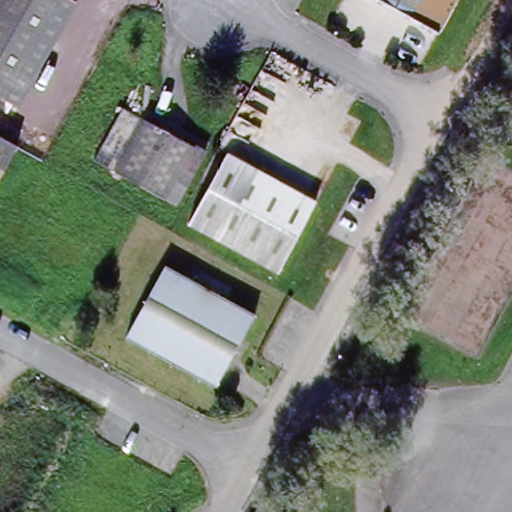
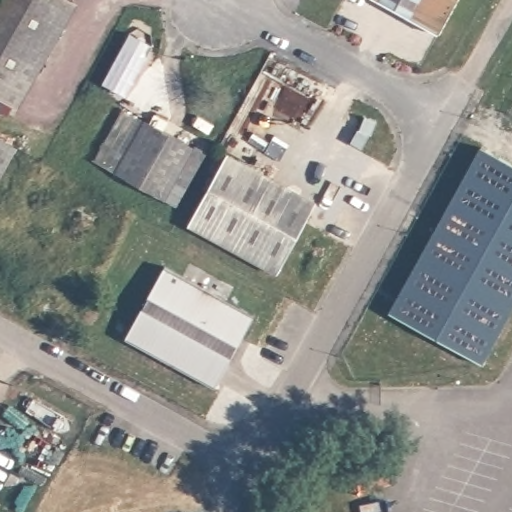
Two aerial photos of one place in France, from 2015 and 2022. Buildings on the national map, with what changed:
unchanged [(17,102),(0,92),(0,0),(74,0),(17,102)]
unchanged [(436,30),(379,0),(453,0),(436,30)]
unchanged [(190,147),(161,198),(113,169),(142,119),(190,147)]
unchanged [(0,173),(0,139),(14,146),(0,173)]
new [(482,148),(512,165),(512,312),(482,365),(390,314),(482,148)]
unchanged [(189,222),(227,152),(315,201),(277,272),(189,222)]
unchanged [(165,263),(255,313),(215,385),(125,335),(165,263)]

